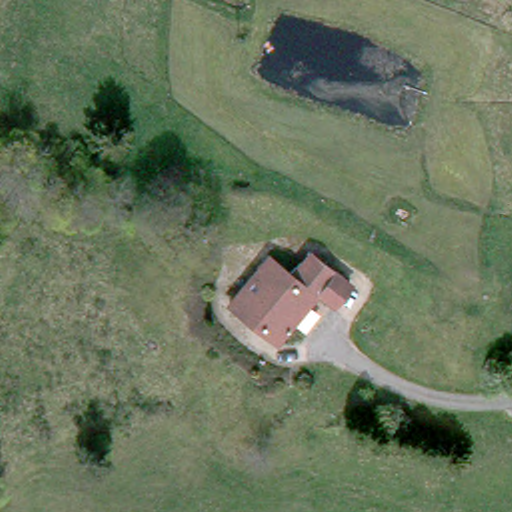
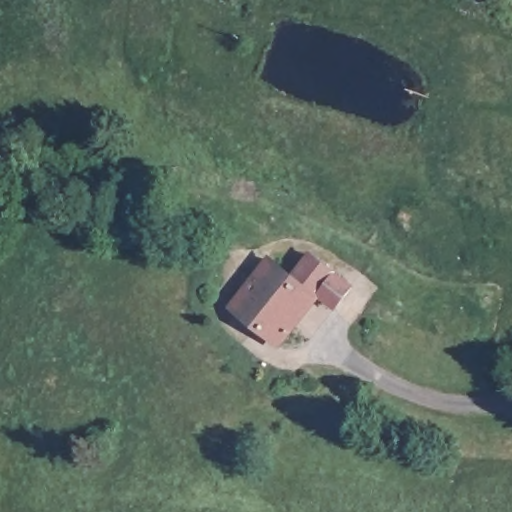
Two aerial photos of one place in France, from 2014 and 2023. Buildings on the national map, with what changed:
unchanged [(182,211),(155,201),(161,184),(190,191),(182,211)]
unchanged [(296,281),(315,295),(277,344),(231,309),(265,257),(284,272),(295,281),(296,281)]
unchanged [(296,281),(305,270),(310,262),(320,270),(323,272),(345,290),(344,291),(331,307),(315,295),(296,281)]
unchanged [(512,419),(512,425),(509,421),(512,419)]

